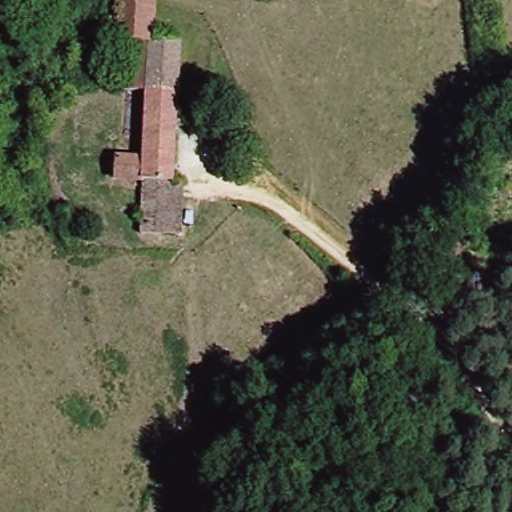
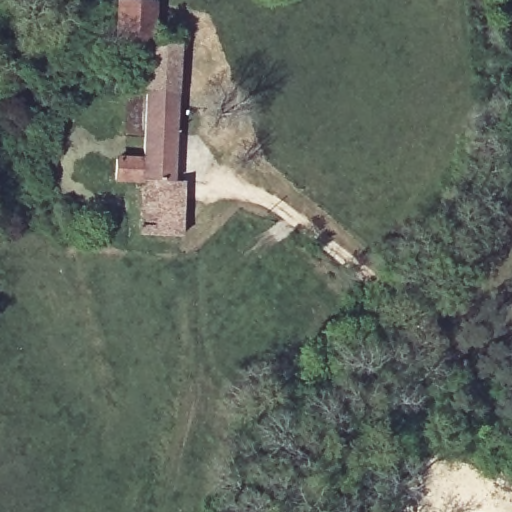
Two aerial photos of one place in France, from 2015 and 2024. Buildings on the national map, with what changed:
unchanged [(140,233),(142,183),(112,181),(112,160),(141,161),(147,97),(117,94),(121,46),(112,45),(113,5),(153,6),(154,43),(180,47),(176,184),(162,183),(161,234),(140,233)]
unchanged [(176,184),(184,184),(182,235),(161,234),(162,183),(176,184)]

